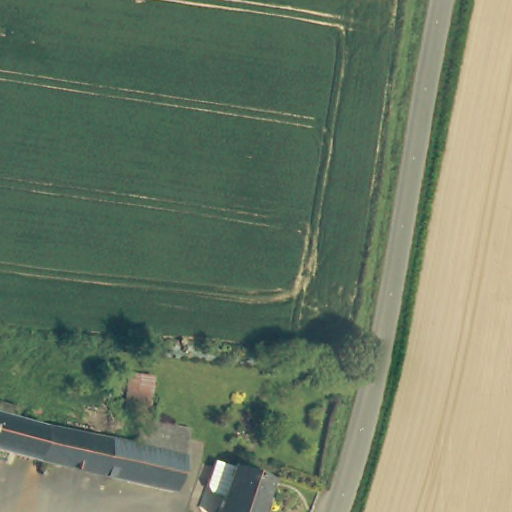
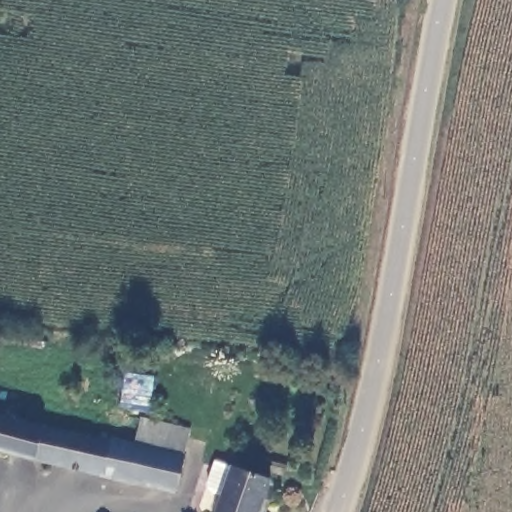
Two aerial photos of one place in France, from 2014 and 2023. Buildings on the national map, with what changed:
unchanged [(163,372),(156,407),(133,402),(143,367),(163,372)]
unchanged [(12,417),(122,438),(133,440),(145,442),(138,481),(0,452),(0,396),(17,400),(12,417)]
unchanged [(133,440),(140,410),(188,422),(181,450),(145,442),(133,440)]
unchanged [(184,451),(176,490),(138,481),(145,442),(181,450),(184,451)]
unchanged [(275,478),(263,512),(208,512),(223,462),(275,478)]

